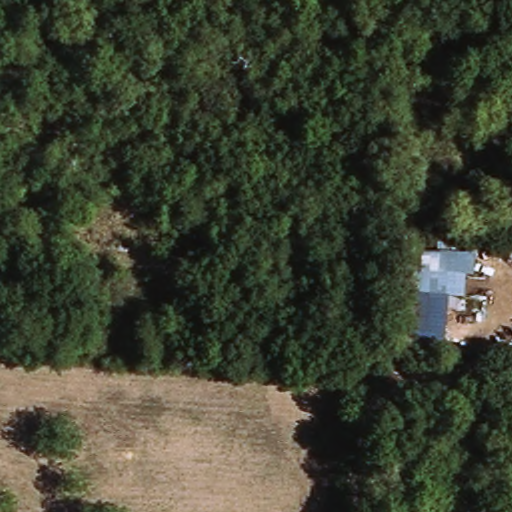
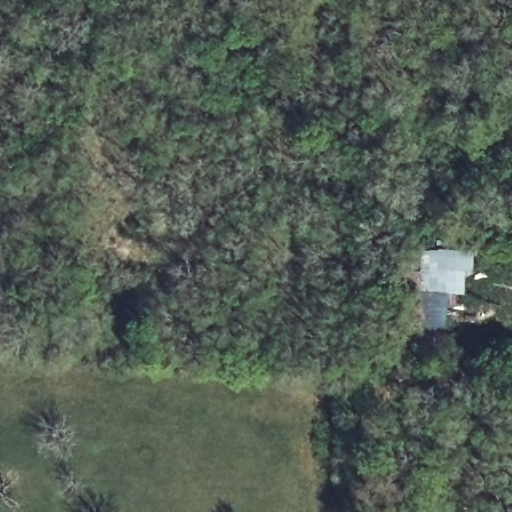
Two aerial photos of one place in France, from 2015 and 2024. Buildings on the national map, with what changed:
unchanged [(445,309),(445,297),(423,296),(422,309),(409,307),(412,252),(480,256),(479,277),(467,277),(467,310),(445,309)]

